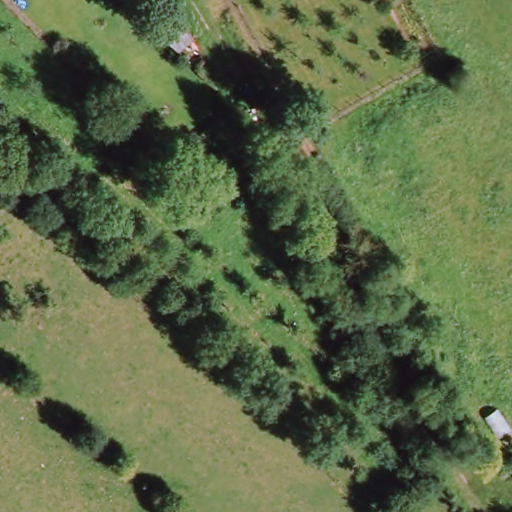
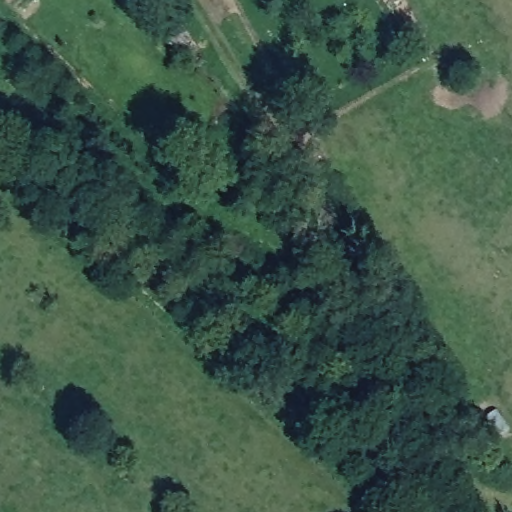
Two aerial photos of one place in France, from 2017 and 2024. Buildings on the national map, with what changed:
unchanged [(145,26),(167,8),(188,46),(176,55),(145,26)]

